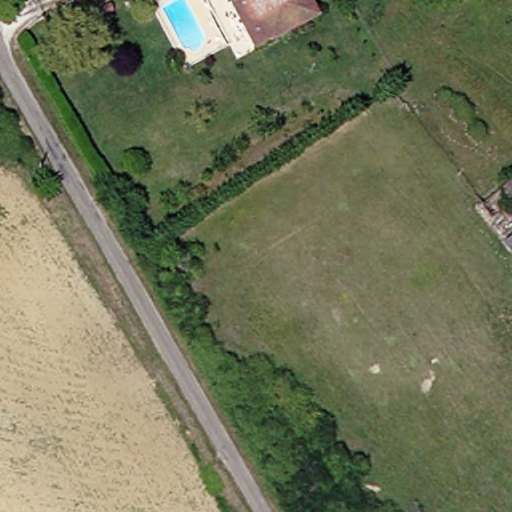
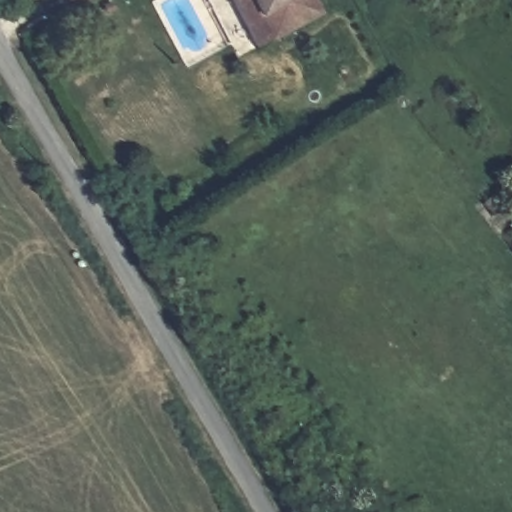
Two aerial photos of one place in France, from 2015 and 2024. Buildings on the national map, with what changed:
unchanged [(256,45),(232,0),(248,0),(268,39),(256,45)]
unchanged [(319,11),(268,39),(248,0),(313,0),(319,11)]
unchanged [(512,191),(512,235),(503,223),(492,207),(512,191)]

